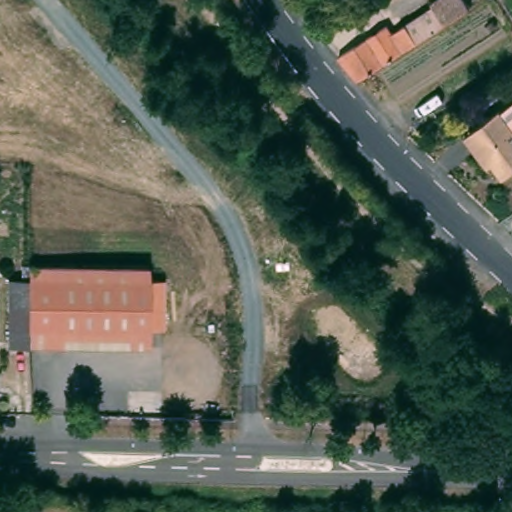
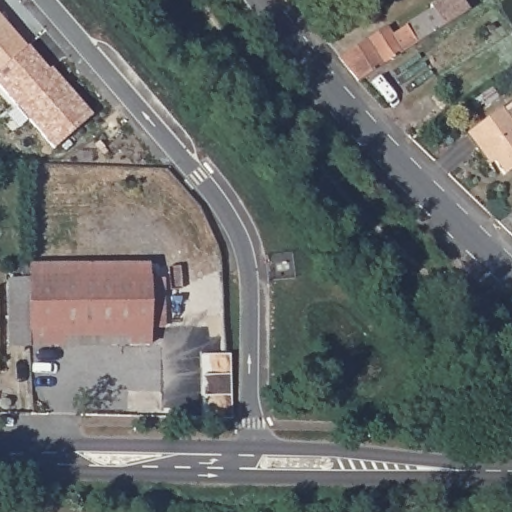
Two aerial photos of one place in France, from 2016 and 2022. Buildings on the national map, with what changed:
unchanged [(397,37),(438,10),(435,5),(444,0),(467,0),(475,12),(363,83),(342,59),(391,27),(397,37)]
new [(25,47),(28,45),(49,72),(52,69),(92,114),(52,148),(0,87),(0,17),(25,47)]
unchanged [(476,125),(507,105),(512,111),(512,170),(508,172),(498,158),(491,162),(469,130),(476,125)]
unchanged [(33,246),(153,251),(151,317),(30,313),(32,260),(33,246)]
unchanged [(9,260),(32,260),(30,313),(29,331),(8,331),(9,267),(9,260)]
unchanged [(456,298),(467,287),(476,298),(484,299),(489,302),(492,307),(493,314),(491,321),(485,325),(479,326),(471,323),(466,316),(466,309),(456,298)]
unchanged [(151,317),(150,335),(29,331),(30,313),(151,317)]

